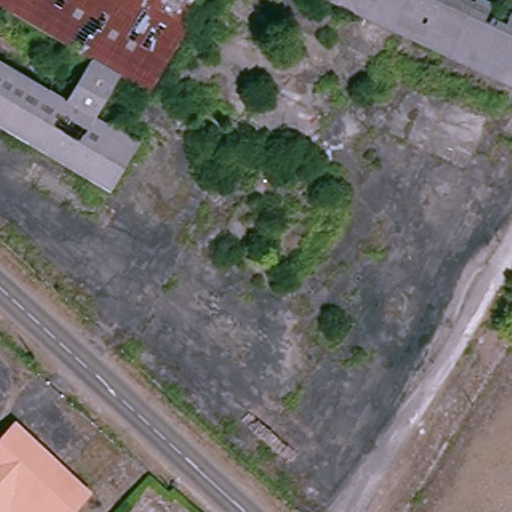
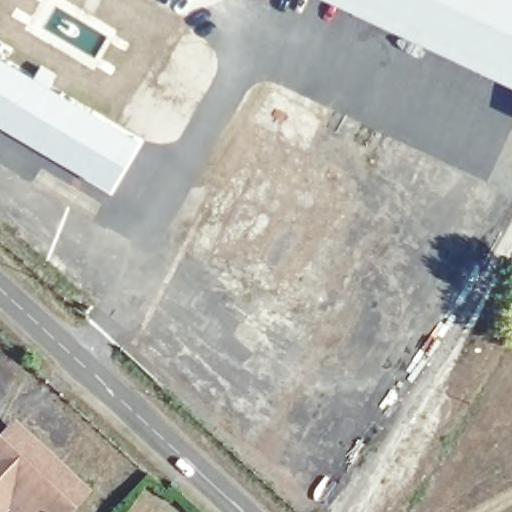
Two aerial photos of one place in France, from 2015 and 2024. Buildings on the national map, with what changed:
demolished [(109,56),(98,50),(14,0),(151,0),(188,22),(153,82),(127,67),(109,56)]
demolished [(151,0),(200,0),(188,22),(151,0)]
unchanged [(512,0),(512,84),(329,0),(512,0)]
unchanged [(0,116),(0,52),(71,94),(94,107),(101,112),(143,136),(115,183),(0,116)]
unchanged [(512,118),(512,147),(501,142),(512,118)]
unchanged [(18,418),(90,485),(64,512),(60,512),(0,455),(0,437),(18,418)]
unchanged [(10,501),(0,511),(0,455),(60,512),(21,512),(10,501)]

